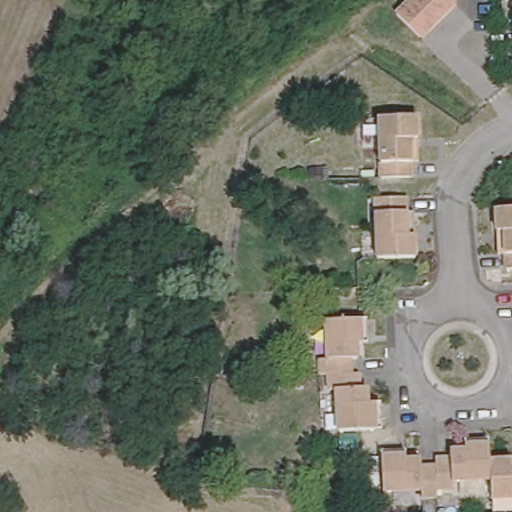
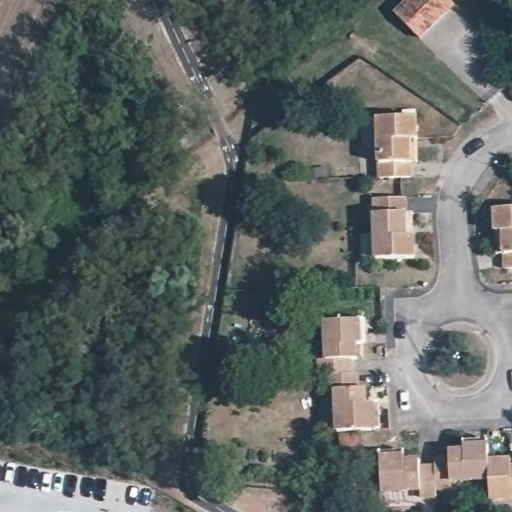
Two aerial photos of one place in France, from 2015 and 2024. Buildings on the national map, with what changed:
unchanged [(399,6),(407,0),(457,0),(457,1),(420,31),(399,6)]
unchanged [(407,157),(408,174),(379,175),(377,117),(415,115),(416,136),(417,156),(407,157)]
unchanged [(404,198),(405,213),(412,213),(413,234),(413,258),(376,259),(375,199),(404,198)]
unchanged [(501,211),(512,211),(512,269),(511,269),(511,256),(503,256),(502,233),(501,211)]
unchanged [(326,316),(361,314),(362,336),(356,337),(357,353),(351,353),(351,368),(328,369),(318,370),(318,355),(328,355),(326,316)]
unchanged [(336,385),(329,385),(328,369),(351,368),(358,368),(359,384),(364,384),(365,397),(375,396),(376,423),(337,423),(336,385)]
unchanged [(437,463),(437,458),(451,457),(450,449),(465,448),(465,444),(486,442),(488,465),(489,478),(452,480),(452,488),(439,489),(437,463)]
unchanged [(382,456),(403,454),(404,459),(419,458),(419,464),(437,463),(439,489),(439,495),(422,496),(422,488),(384,491),(382,456)]
unchanged [(512,498),(491,499),(489,478),(488,465),(510,463),(512,463),(512,498)]

